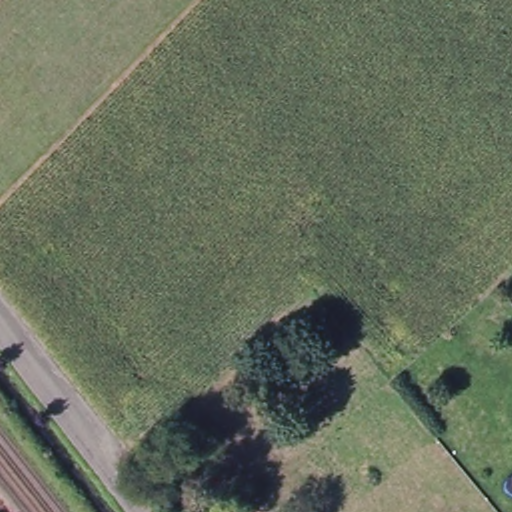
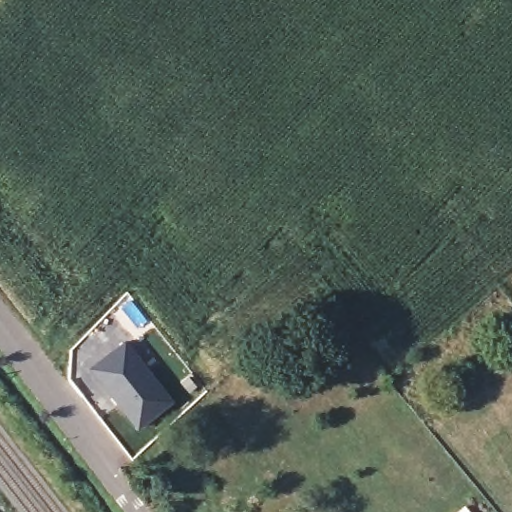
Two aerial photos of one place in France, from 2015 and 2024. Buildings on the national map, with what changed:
new [(125,339),(175,401),(138,430),(88,368),(125,339)]

